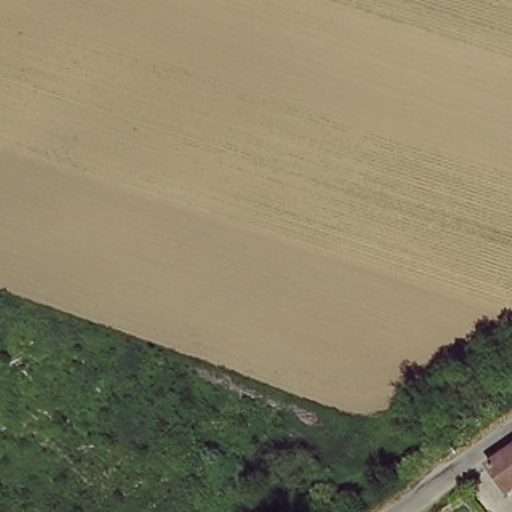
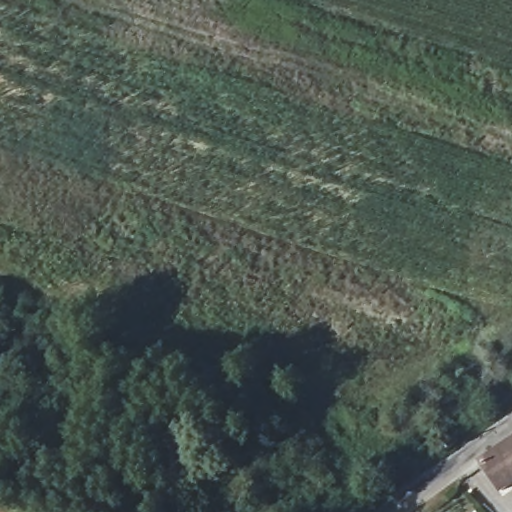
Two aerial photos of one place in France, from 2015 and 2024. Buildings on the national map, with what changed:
unchanged [(504,491),(486,464),(512,446),(512,485),(504,491)]

